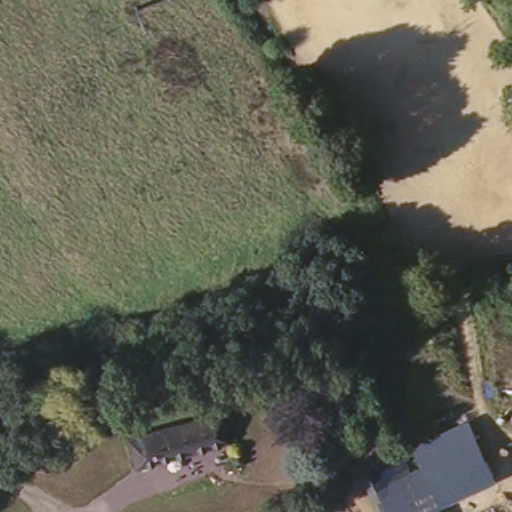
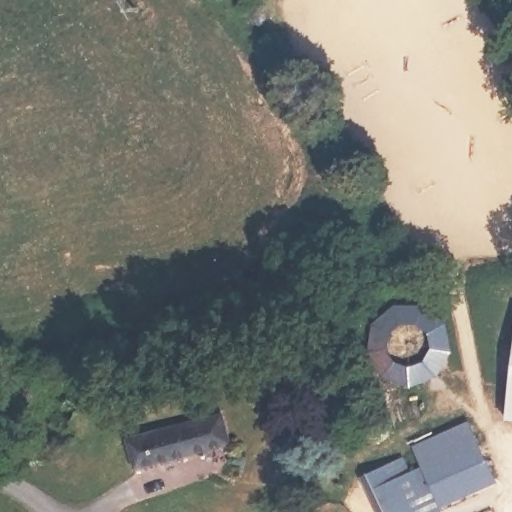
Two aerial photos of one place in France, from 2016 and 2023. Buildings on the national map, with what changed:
new [(450,353),(447,362),(443,369),(438,376),(431,381),(424,384),(416,387),(407,388),(400,387),(391,384),(384,381),(377,376),(372,369),(368,362),(366,353),(365,345),(366,337),(368,329),(372,322),(377,314),(384,309),(391,305),(400,303),(407,302),(416,303),(424,305),(431,309),(438,314),(443,322),(447,329),(450,337),(451,345),(450,353)]
new [(509,424),(512,390),(512,424),(509,424)]
unchanged [(232,443),(136,469),(129,438),(223,411),(232,443)]
unchanged [(366,478),(402,458),(408,471),(421,464),(412,449),(468,423),(496,481),(440,508),(442,512),(382,512),(366,478)]

